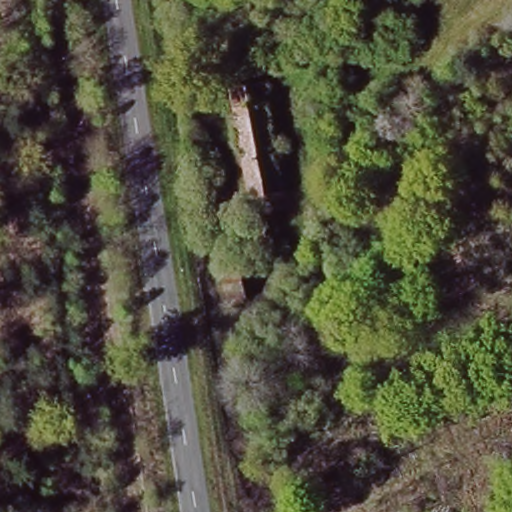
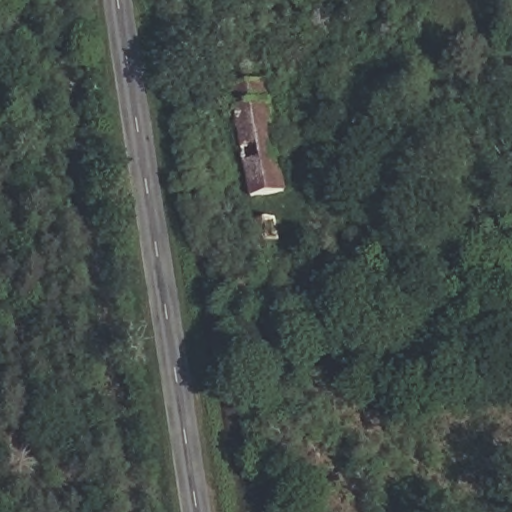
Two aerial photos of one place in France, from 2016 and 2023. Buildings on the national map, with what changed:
unchanged [(258,76),(266,97),(285,93),(294,137),(277,141),(287,189),(253,196),(228,82),(258,76)]
unchanged [(271,205),(276,239),(250,244),(245,210),(271,205)]
unchanged [(257,260),(264,302),(230,307),(223,266),(257,260)]

